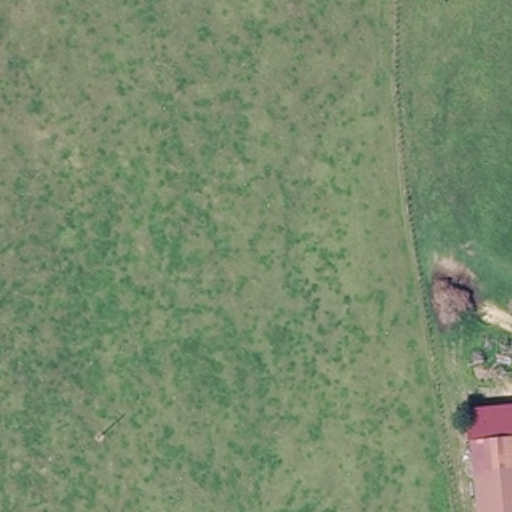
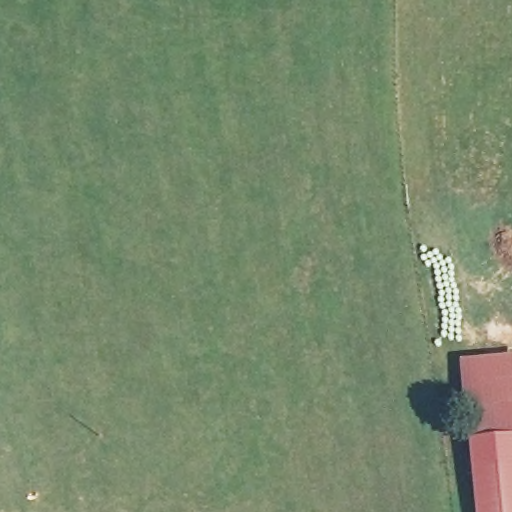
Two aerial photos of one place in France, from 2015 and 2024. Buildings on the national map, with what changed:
new [(463,413),(459,363),(512,358),(512,407),(470,412),(463,413)]
unchanged [(470,412),(512,407),(512,512),(477,512),(470,412)]

